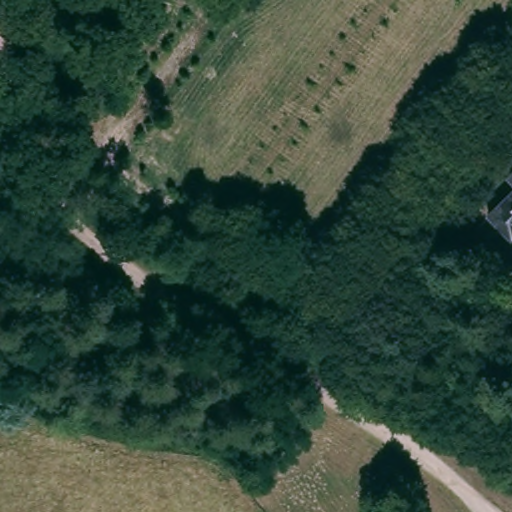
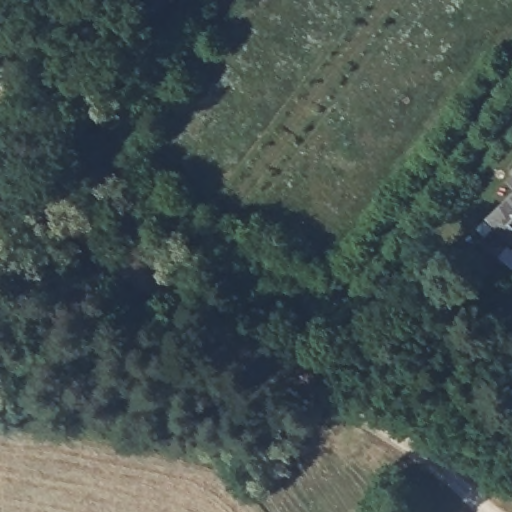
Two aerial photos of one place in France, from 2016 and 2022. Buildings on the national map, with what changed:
unchanged [(500,232),(499,231),(478,211),(506,181),(497,172),(512,157),(512,234),(507,229),(500,232)]
unchanged [(512,257),(512,270),(505,264),(512,257)]

